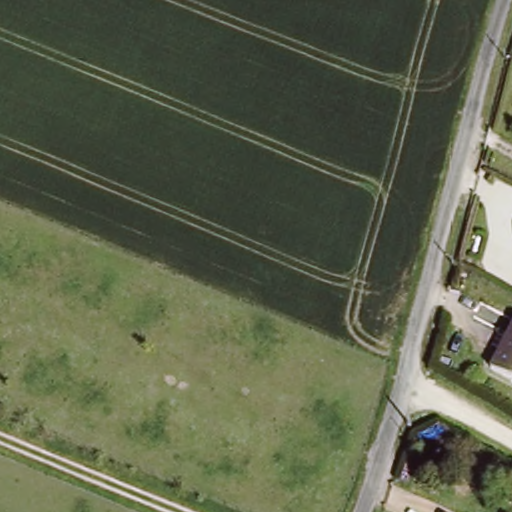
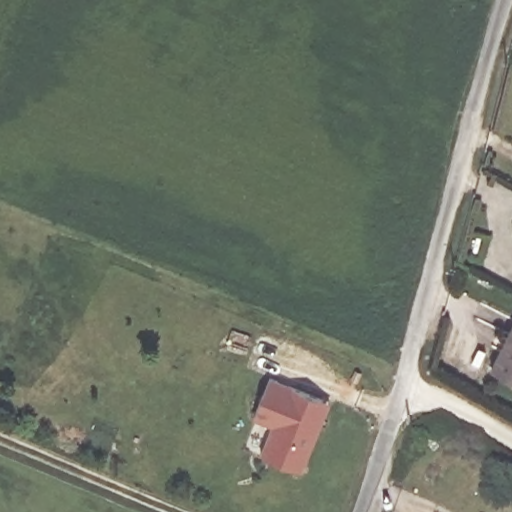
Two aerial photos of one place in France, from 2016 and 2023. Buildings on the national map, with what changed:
unchanged [(512,325),(512,373),(493,363),(512,325)]
new [(271,427),(253,420),(271,376),(331,402),(303,471),(259,453),(271,427)]
unchanged [(512,512),(511,512),(509,511),(512,508),(512,512)]

